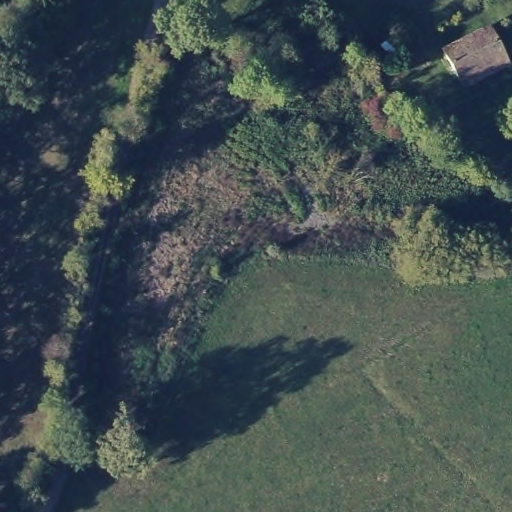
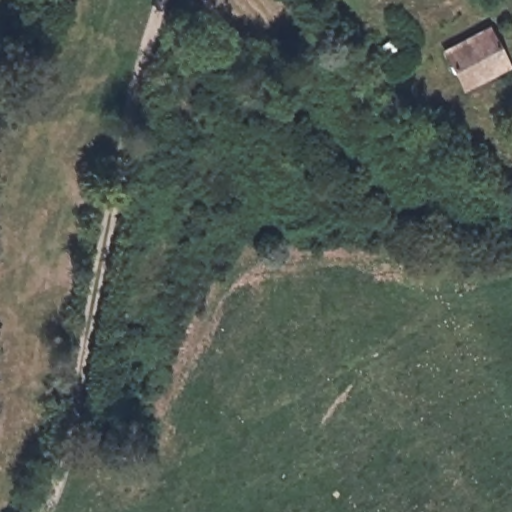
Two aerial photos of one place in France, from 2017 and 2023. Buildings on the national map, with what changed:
unchanged [(491,19),(510,53),(463,74),(444,40),(491,19)]

